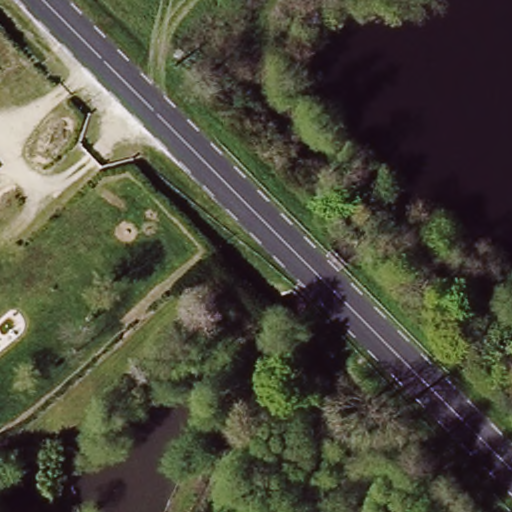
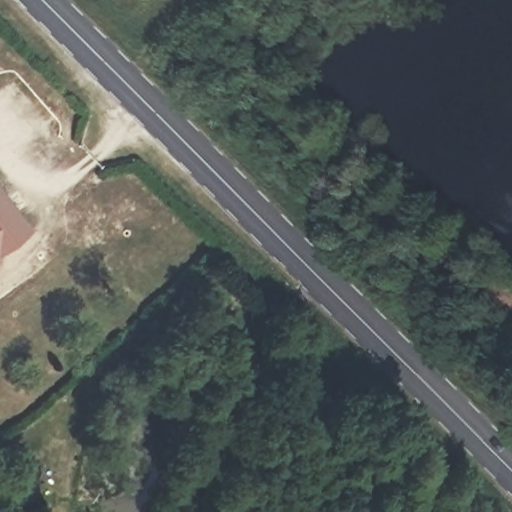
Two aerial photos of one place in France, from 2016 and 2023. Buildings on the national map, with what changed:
new [(0,183),(34,230),(0,258),(0,183)]

